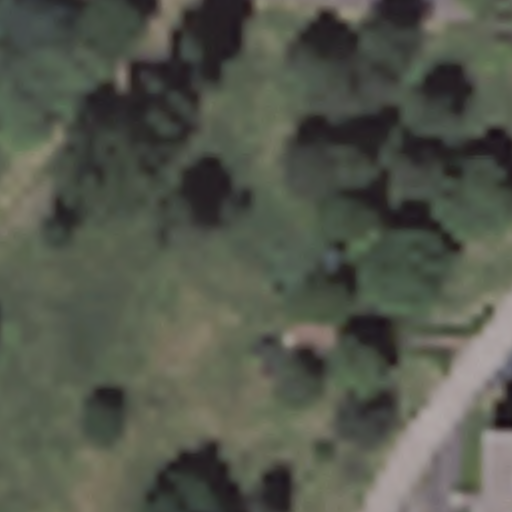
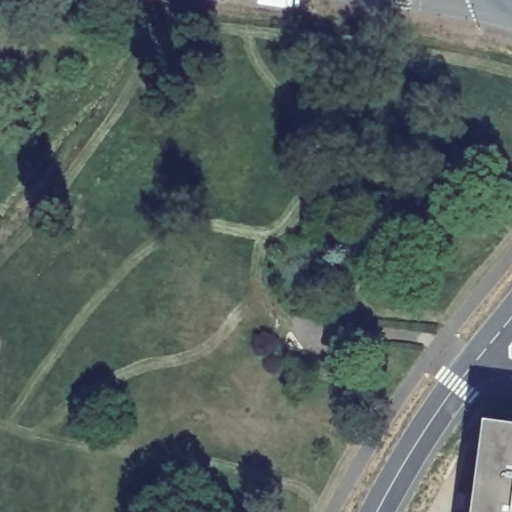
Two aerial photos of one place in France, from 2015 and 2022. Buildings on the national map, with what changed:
unchanged [(491,423),(512,426),(512,512),(479,512),(491,423)]

